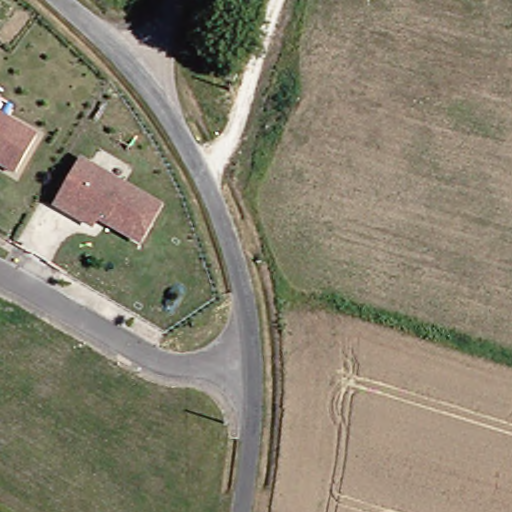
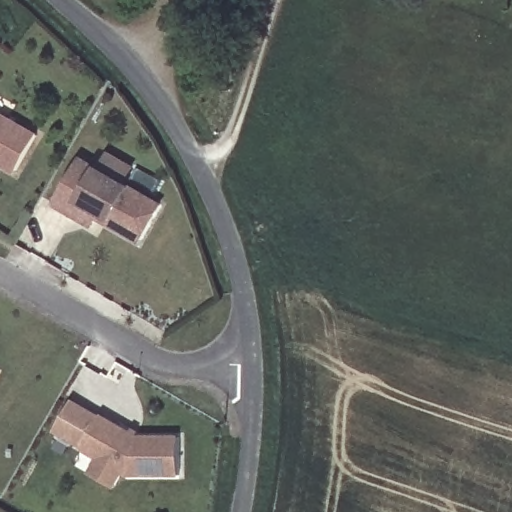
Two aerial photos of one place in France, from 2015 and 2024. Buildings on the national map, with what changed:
unchanged [(35,138),(15,175),(0,166),(0,117),(35,138)]
unchanged [(75,217),(59,207),(85,162),(164,206),(143,244),(100,219),(96,227),(75,217)]
new [(128,475),(123,472),(115,487),(92,473),(101,458),(83,448),(101,416),(139,438),(180,438),(180,475),(128,475)]

